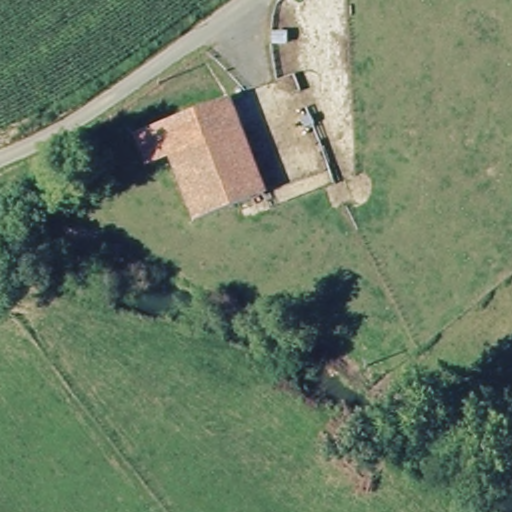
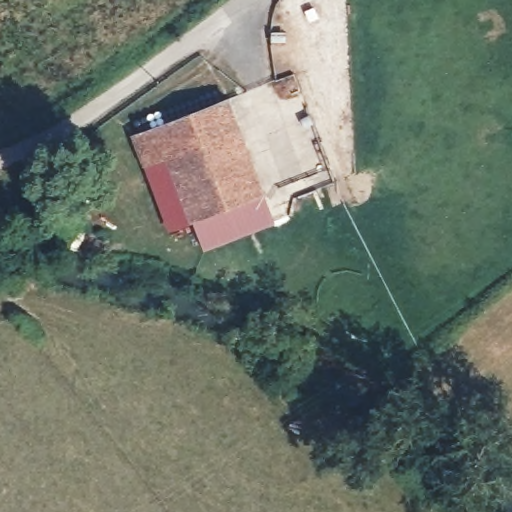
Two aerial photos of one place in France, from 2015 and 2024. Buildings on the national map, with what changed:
unchanged [(226,95),(262,189),(192,215),(166,151),(142,159),(131,131),(226,95)]
new [(274,221),(205,249),(192,215),(262,189),(274,221)]

